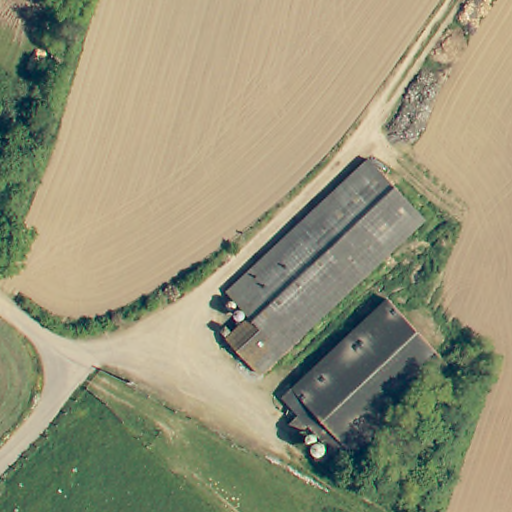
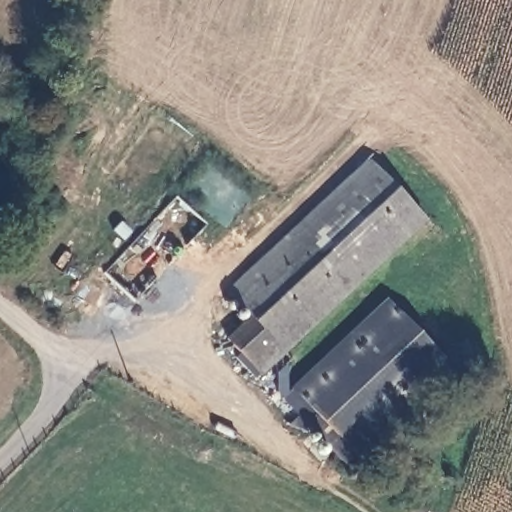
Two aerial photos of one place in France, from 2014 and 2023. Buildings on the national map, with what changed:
unchanged [(269,374),(235,338),(255,315),(234,291),(373,157),(431,217),(269,374)]
unchanged [(350,466),(288,404),(390,303),(452,367),(350,466)]

